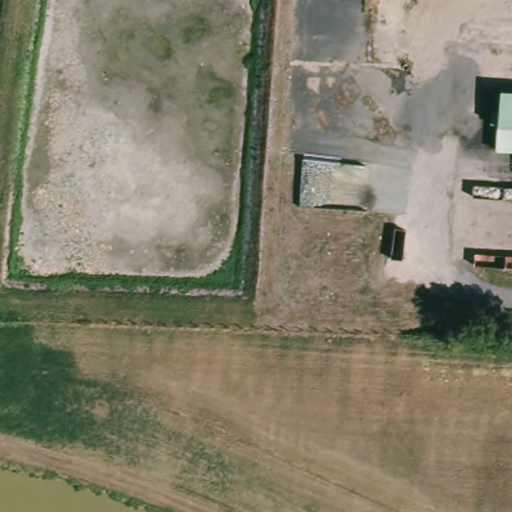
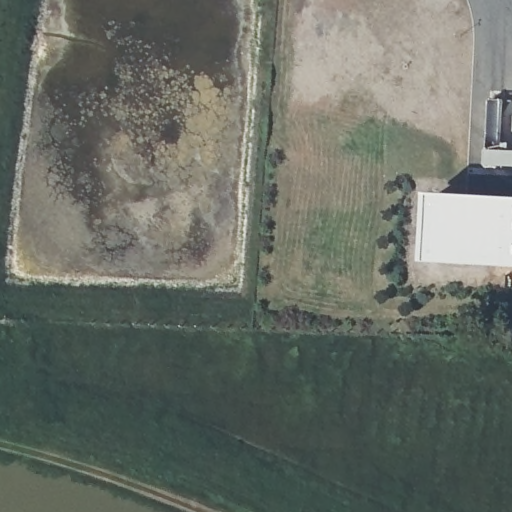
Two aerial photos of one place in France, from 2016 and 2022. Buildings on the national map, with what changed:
demolished [(495,126),(498,92),(512,94),(512,128),(495,126)]
new [(487,195),(490,151),(512,152),(512,265),(429,260),(432,192),(487,195)]

